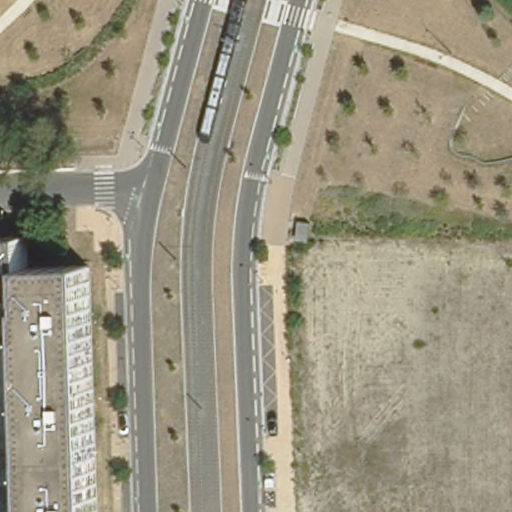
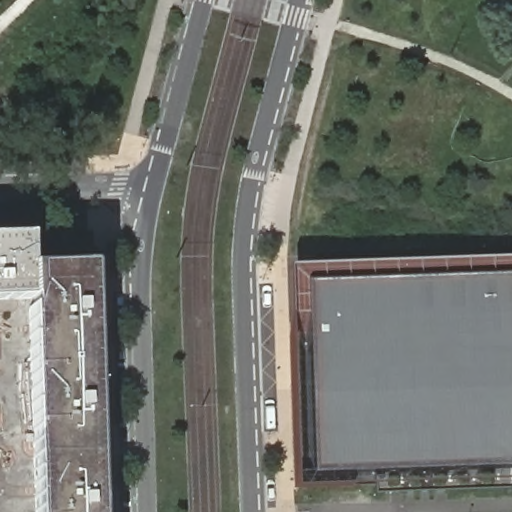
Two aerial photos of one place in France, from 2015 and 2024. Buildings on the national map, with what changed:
unchanged [(30,315),(29,306),(0,307),(0,242),(27,242),(29,273),(87,271),(88,271),(89,271),(89,272),(90,272),(90,273),(97,512),(33,512),(27,315),(30,315)]
new [(284,267),(512,258),(512,482),(292,491),(284,267)]
unchanged [(29,306),(30,315),(27,315),(33,512),(0,512),(0,307),(29,306)]

